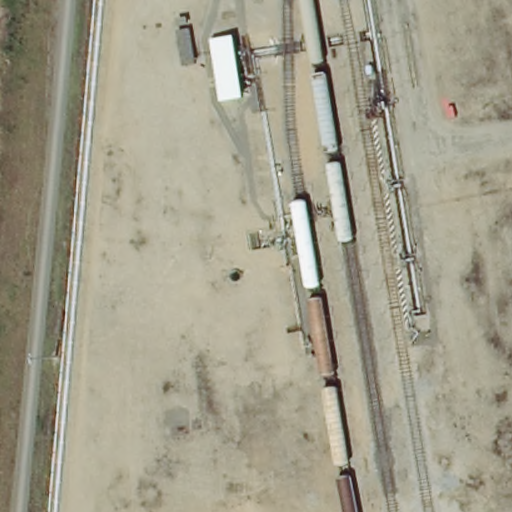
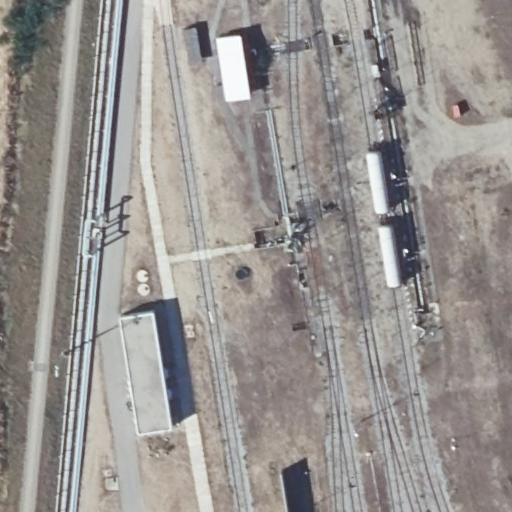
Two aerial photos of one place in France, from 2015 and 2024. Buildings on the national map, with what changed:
unchanged [(212,36),(240,31),(252,94),(225,99),(212,36)]
new [(143,433),(125,316),(155,311),(174,426),(143,433)]

